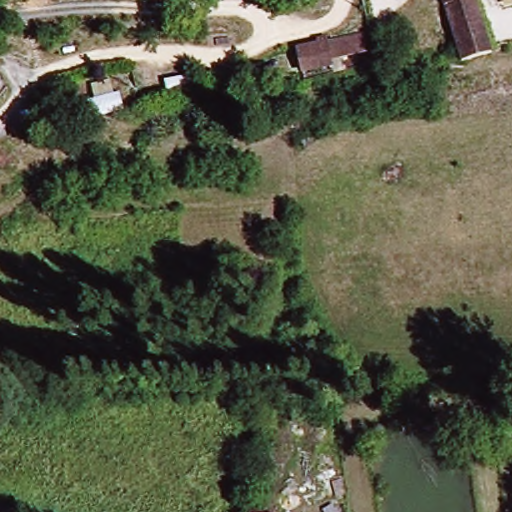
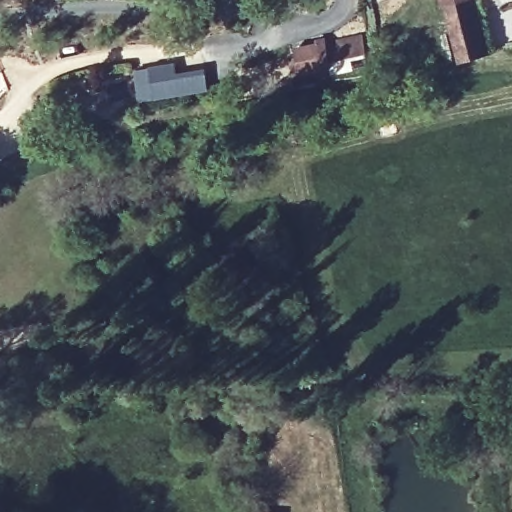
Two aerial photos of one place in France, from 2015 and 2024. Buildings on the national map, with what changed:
unchanged [(482,1),(505,51),(475,65),(459,30),(449,35),(435,0),(485,0),(482,1)]
unchanged [(342,60),(302,69),(296,50),(336,40),(342,60)]
new [(177,71),(190,75),(207,72),(211,90),(142,101),(137,69),(176,62),(177,71)]
unchanged [(85,101),(120,95),(125,114),(87,119),(85,101)]

